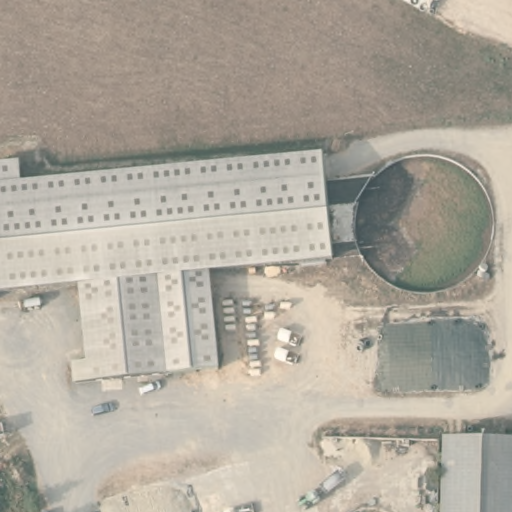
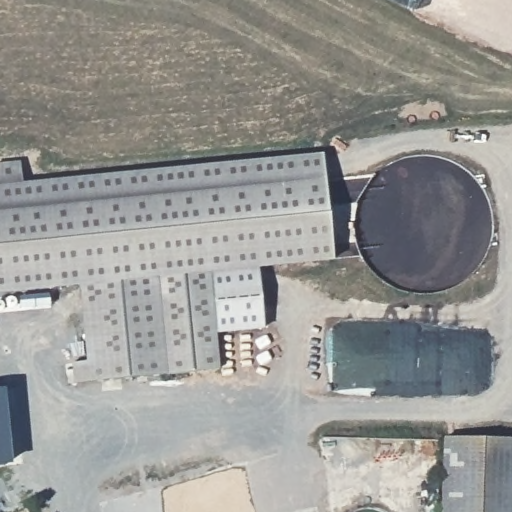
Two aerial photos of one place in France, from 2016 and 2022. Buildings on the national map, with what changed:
unchanged [(22,184),(323,155),(333,259),(209,272),(218,369),(75,383),(73,362),(88,361),(81,284),(0,292),(0,165),(20,163),(22,184)]
new [(209,272),(259,267),(264,328),(215,333),(209,272)]
new [(11,465),(0,466),(0,389),(3,388),(11,465)]
unchanged [(512,435),(512,512),(444,512),(442,437),(512,435)]

